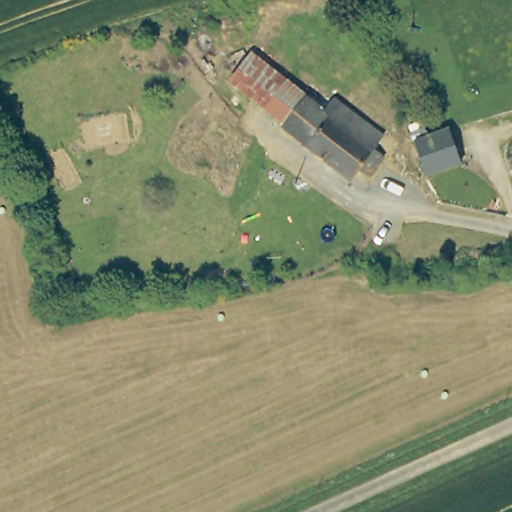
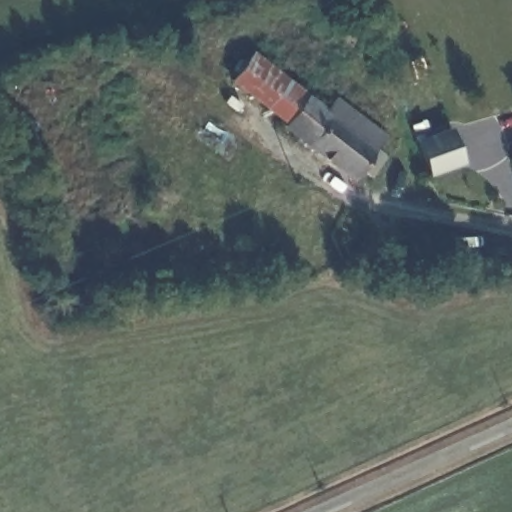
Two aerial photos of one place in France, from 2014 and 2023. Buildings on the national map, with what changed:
unchanged [(232,76),(254,49),(308,91),(286,119),(232,76)]
unchanged [(326,106),(335,96),(395,141),(372,176),(361,167),(353,177),(283,122),(286,119),(308,91),(326,106)]
unchanged [(424,122),(430,134),(449,128),(463,166),(426,177),(415,142),(410,127),(424,122)]

